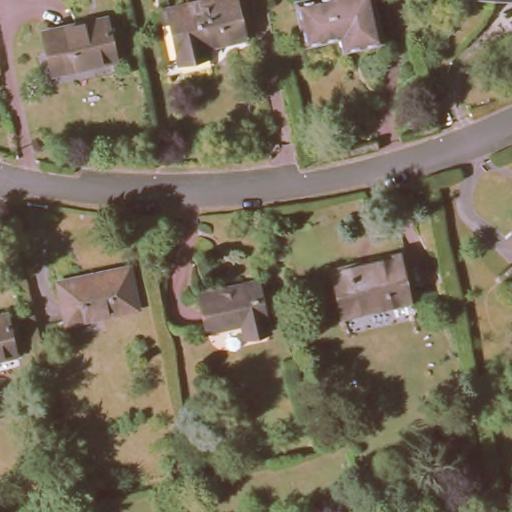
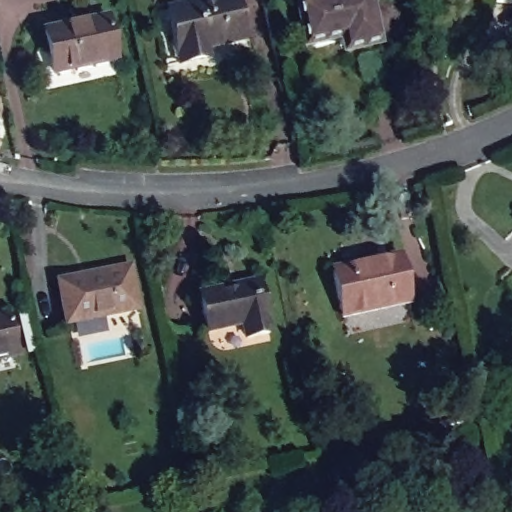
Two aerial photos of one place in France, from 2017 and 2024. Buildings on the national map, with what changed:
unchanged [(242,37),(205,45),(206,56),(178,61),(167,8),(207,0),(235,0),(242,37)]
unchanged [(378,38),(343,45),(340,32),(304,39),(296,0),(370,0),(378,38)]
unchanged [(110,60),(47,68),(42,28),(105,19),(110,60)]
unchanged [(324,265),(391,251),(400,295),(334,310),(324,265)]
unchanged [(52,278),(120,263),(128,304),(60,320),(52,278)]
unchanged [(240,322),(201,330),(195,294),(255,282),(265,334),(243,338),(240,322)]
unchanged [(2,310),(11,352),(0,354),(0,310),(2,310)]

